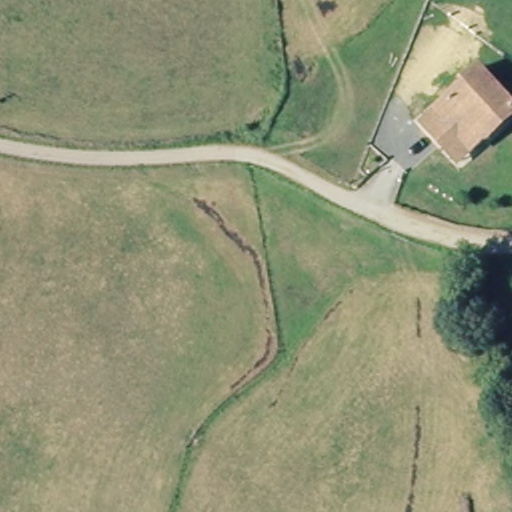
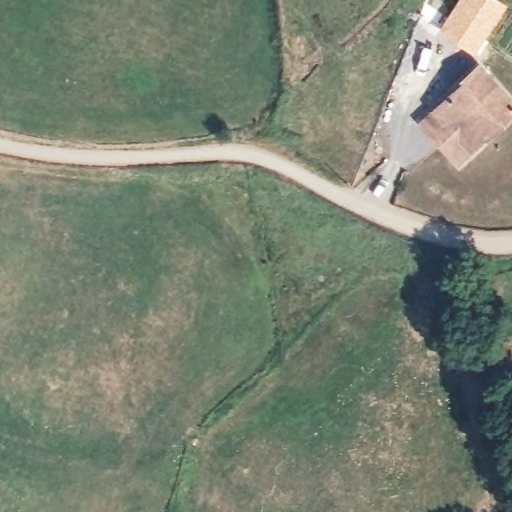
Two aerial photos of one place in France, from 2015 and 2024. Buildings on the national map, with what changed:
new [(458,0),(498,0),(508,7),(474,56),(438,29),(458,0)]
unchanged [(443,144),(424,121),(471,80),(466,75),(480,62),(512,96),(512,114),(478,145),(459,162),(443,144)]

